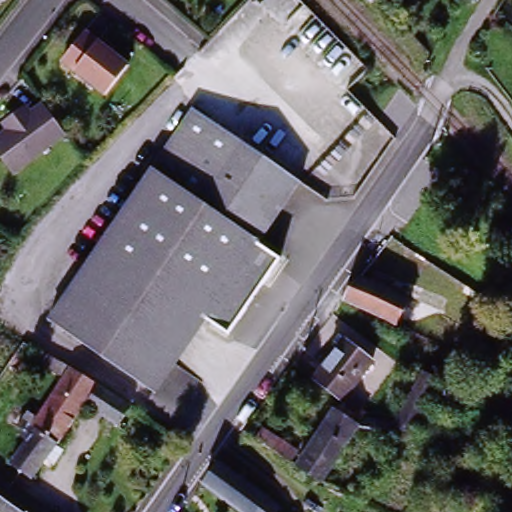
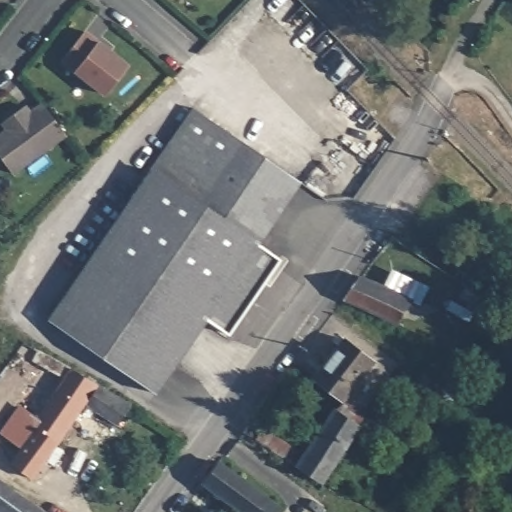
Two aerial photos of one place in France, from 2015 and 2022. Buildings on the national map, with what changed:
unchanged [(128,61),(105,90),(63,57),(86,27),(128,61)]
unchanged [(192,103),(298,175),(270,217),(295,233),(287,244),(160,151),(192,103)]
unchanged [(12,172),(0,155),(0,135),(15,125),(10,118),(29,106),(33,113),(45,105),(66,135),(12,172)]
unchanged [(157,393),(51,325),(160,151),(287,244),(229,332),(205,318),(157,393)]
unchanged [(346,298),(358,272),(409,300),(397,325),(346,298)]
unchanged [(367,356),(339,396),(310,376),(339,336),(367,356)]
unchanged [(8,459),(25,433),(12,426),(23,409),(35,417),(59,379),(24,354),(32,344),(67,364),(92,379),(97,382),(130,405),(118,423),(86,401),(36,476),(8,459)]
unchanged [(389,428),(421,380),(435,390),(397,446),(383,436),(352,422),(355,417),(389,428)]
unchanged [(292,463),(329,407),(352,422),(315,478),(292,463)]
unchanged [(265,436),(260,443),(259,442),(244,432),(250,424),(265,436)]
unchanged [(241,512),(204,483),(218,465),(261,498),(251,512),(241,512)]
unchanged [(30,512),(5,512),(0,508),(0,480),(35,506),(30,512)]
unchanged [(43,512),(30,512),(35,506),(43,512)]

